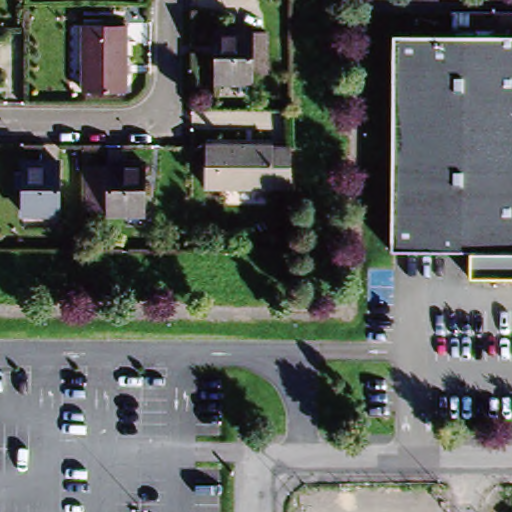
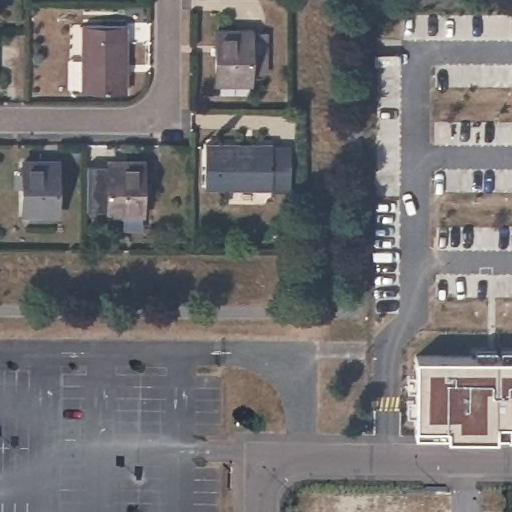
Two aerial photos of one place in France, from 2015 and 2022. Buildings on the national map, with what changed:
unchanged [(120,25),(118,84),(76,83),(77,25),(120,25)]
unchanged [(213,81),(214,28),(250,29),(250,32),(266,32),(265,72),(250,71),(249,82),(213,81)]
demolished [(512,33),(512,275),(472,275),(472,250),(392,250),(392,33),(512,33)]
unchanged [(204,182),(204,142),(264,143),(280,144),(280,181),(264,181),(264,183),(204,182)]
unchanged [(107,166),(107,162),(147,163),(145,212),(107,212),(107,208),(107,166)]
unchanged [(81,167),(107,166),(107,208),(81,209),(81,167)]
unchanged [(60,167),(60,216),(26,216),(27,167),(60,167)]
new [(512,353),(512,426),(509,426),(509,433),(415,433),(415,353),(512,353)]

